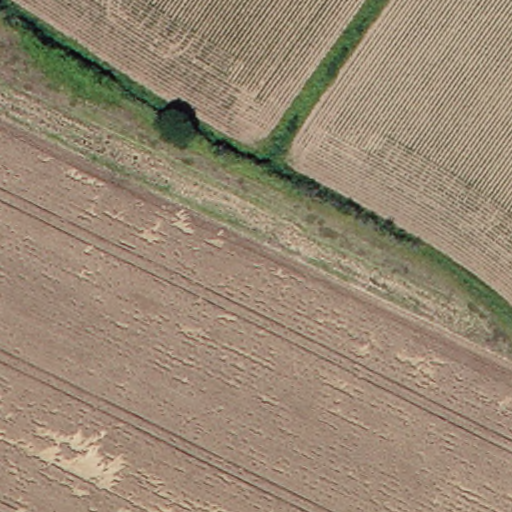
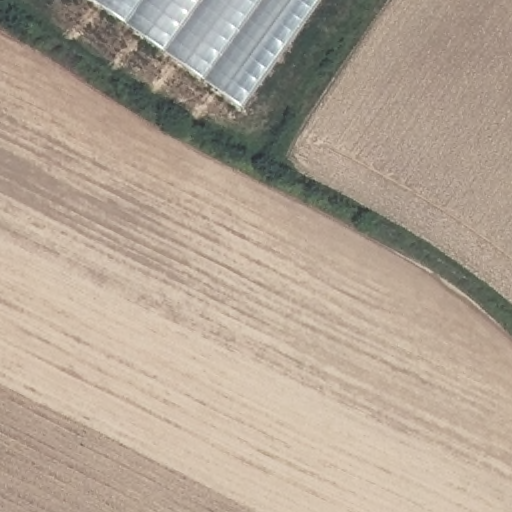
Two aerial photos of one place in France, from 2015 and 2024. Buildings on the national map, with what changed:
new [(97,0),(316,0),(239,105),(97,0)]

